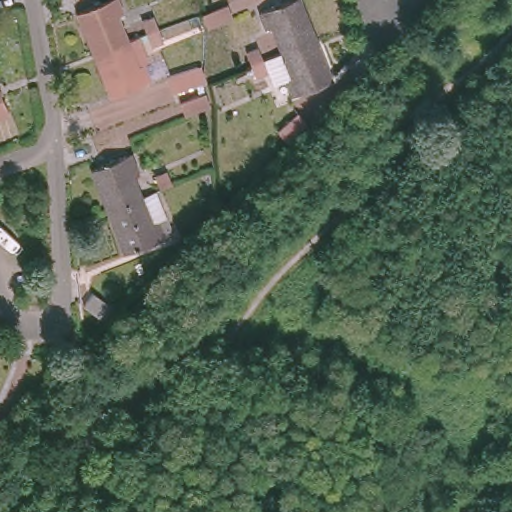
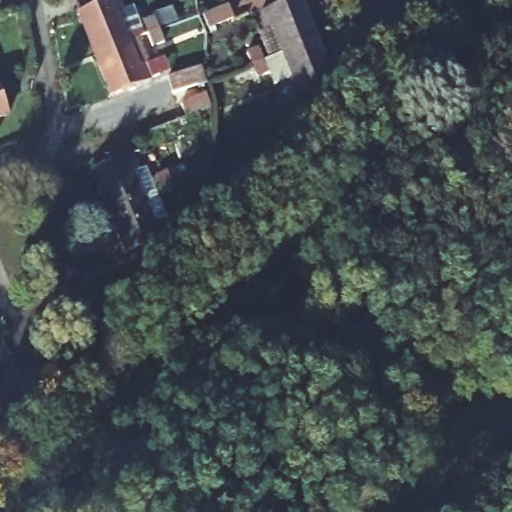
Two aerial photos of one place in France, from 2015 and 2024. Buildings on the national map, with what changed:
unchanged [(80,13),(115,0),(118,0),(123,13),(115,16),(125,41),(95,54),(80,13)]
unchanged [(274,26),(267,29),(260,13),(293,0),(300,0),(314,34),(315,38),(284,51),(274,26)]
unchanged [(205,12),(226,3),(232,16),(207,26),(206,25),(202,14),(205,12)]
unchanged [(150,46),(145,34),(144,34),(140,21),(151,17),(156,30),(161,42),(150,46)]
unchanged [(315,38),(332,80),(294,95),(287,79),(294,76),(284,51),(315,38)]
unchanged [(125,41),(135,66),(143,62),(149,80),(111,94),(95,54),(125,41)]
unchanged [(259,76),(254,64),(248,51),(260,46),(265,59),(270,71),(259,76)]
unchanged [(0,116),(0,90),(9,112),(0,116)]
unchanged [(190,98),(205,92),(210,105),(185,115),(180,102),(190,98)]
unchanged [(297,114),(307,122),(289,142),(279,133),(297,114)]
unchanged [(110,211),(92,170),(130,154),(137,171),(130,175),(140,200),(110,211)]
unchanged [(165,175),(170,187),(159,192),(154,179),(165,175)]
unchanged [(140,200),(150,224),(157,221),(164,237),(125,252),(110,211),(140,200)]

